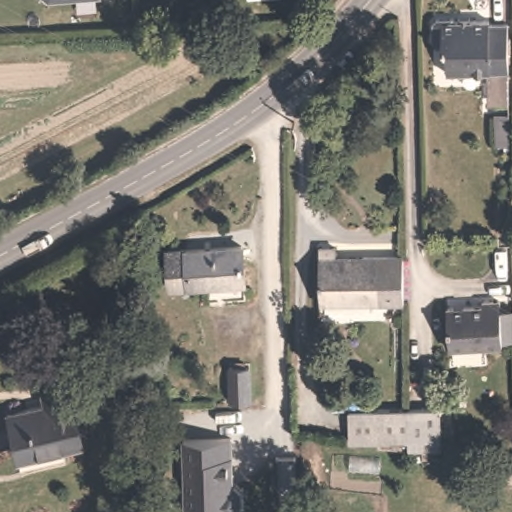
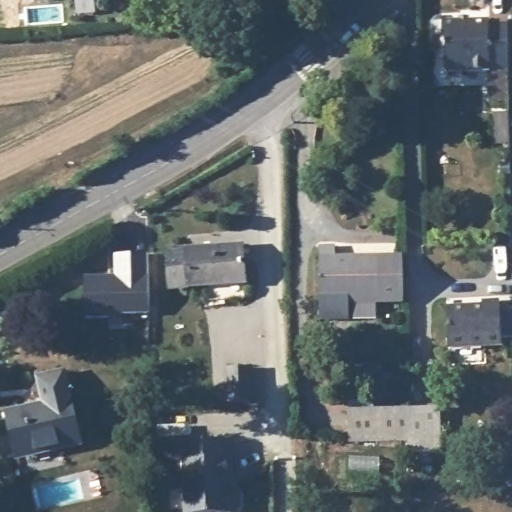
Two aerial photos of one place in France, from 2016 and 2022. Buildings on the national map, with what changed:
unchanged [(507,71),(440,71),(438,48),(423,43),(423,18),(441,17),(444,20),(484,21),(484,24),(506,23),(507,71)]
unchanged [(246,242),(246,276),(231,277),(231,280),(171,281),(170,243),(246,242)]
unchanged [(408,301),(317,301),(316,247),(335,246),(336,256),(406,257),(408,301)]
new [(82,275),(115,273),(114,254),(147,252),(150,313),(107,314),(107,319),(84,318),(82,275)]
unchanged [(499,308),(500,350),(445,353),(443,309),(499,308)]
unchanged [(252,366),(250,401),(230,400),(232,364),(252,366)]
unchanged [(85,448),(62,453),(60,446),(16,456),(6,411),(42,402),(41,392),(70,386),(85,448)]
unchanged [(355,405),(411,413),(412,445),(351,436),(355,405)]
unchanged [(440,411),(442,449),(412,445),(411,413),(411,410),(440,411)]
unchanged [(232,460),(228,460),(230,490),(236,490),(241,495),(242,509),(240,512),(187,512),(183,443),(231,440),(232,460)]

